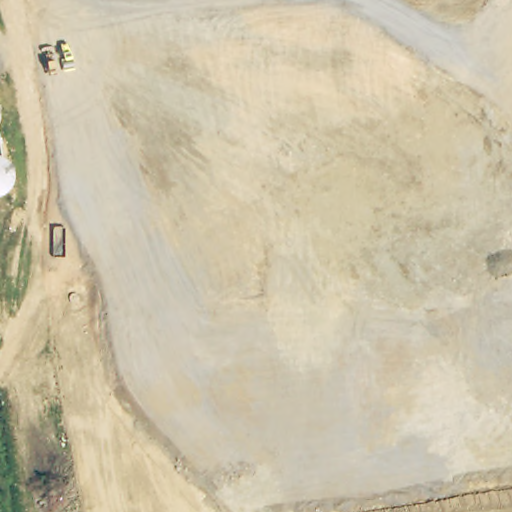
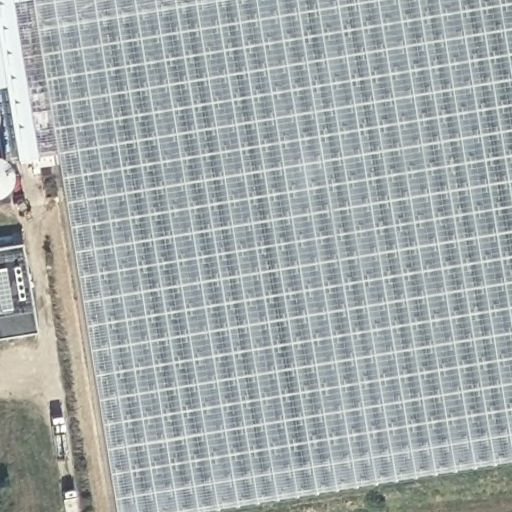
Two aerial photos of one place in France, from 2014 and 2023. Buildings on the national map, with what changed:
new [(31,0),(512,0),(512,460),(192,512),(110,512),(52,154),(13,161),(0,85),(0,0),(27,0),(31,0)]
new [(34,333),(0,339),(0,248),(20,244),(34,333)]

